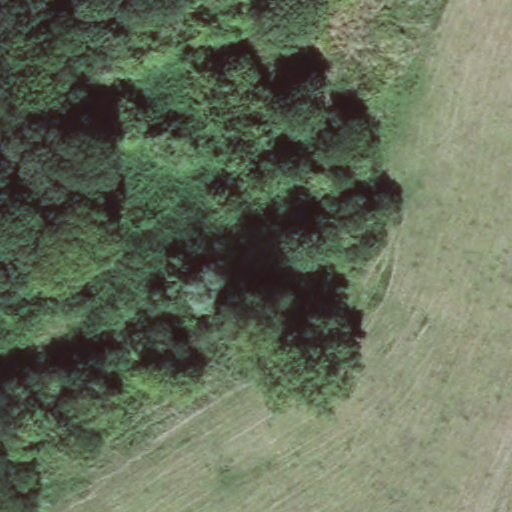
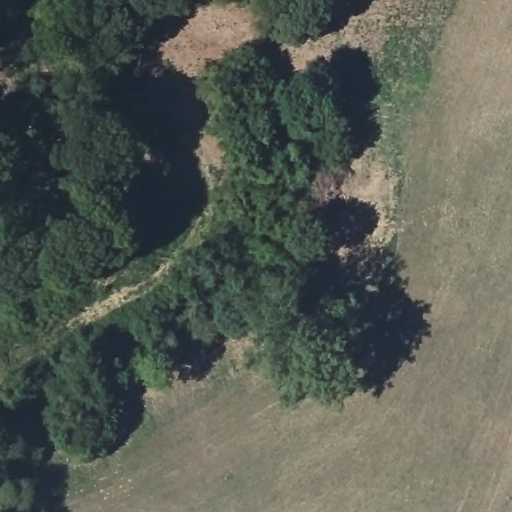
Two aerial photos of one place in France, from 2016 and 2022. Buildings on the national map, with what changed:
[]

